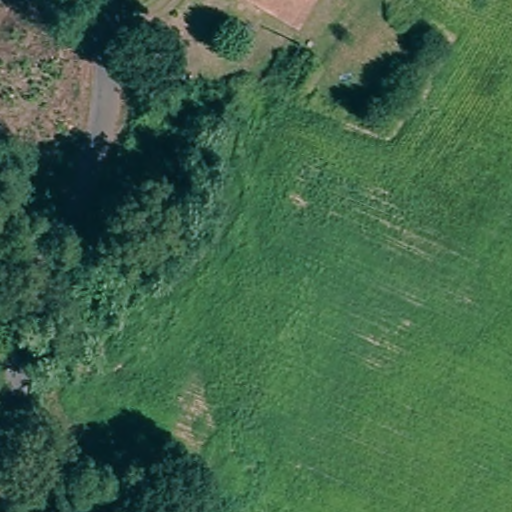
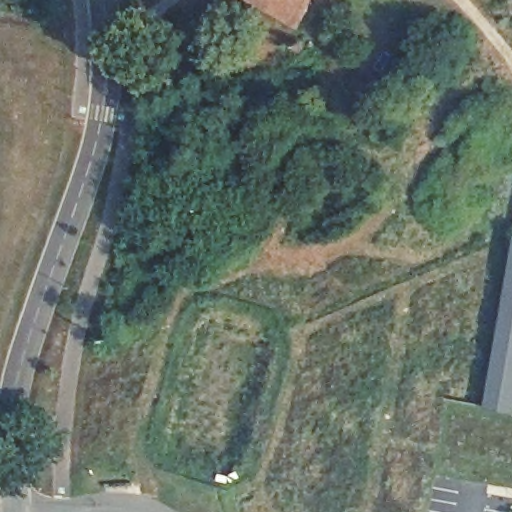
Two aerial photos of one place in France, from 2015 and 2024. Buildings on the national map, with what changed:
unchanged [(295,17),(265,0),(305,0),(295,17)]
new [(512,260),(512,411),(487,407),(512,260)]

